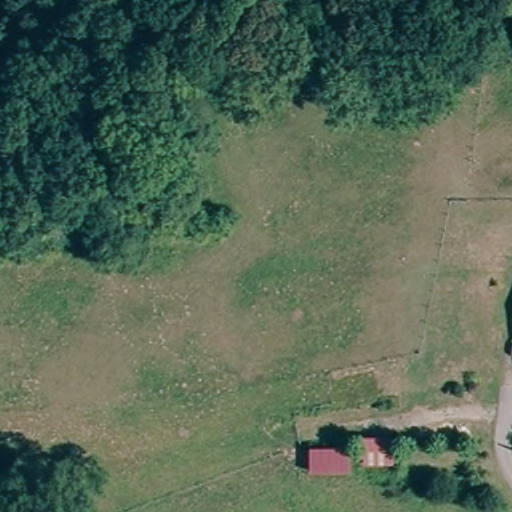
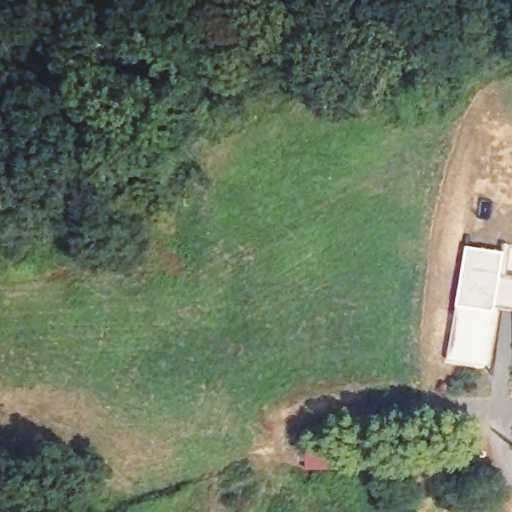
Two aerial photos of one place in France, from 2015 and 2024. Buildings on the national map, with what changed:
new [(504,277),(512,278),(512,310),(500,308),(498,315),(460,308),(470,250),(507,255),(504,277)]
new [(449,362),(460,308),(498,315),(500,308),(503,309),(492,370),(449,362)]
new [(400,437),(401,460),(374,460),(373,438),(400,437)]
new [(352,443),(353,469),(313,470),(312,445),(352,443)]

